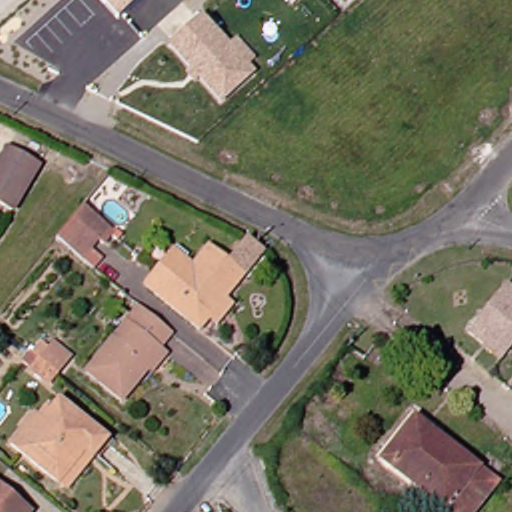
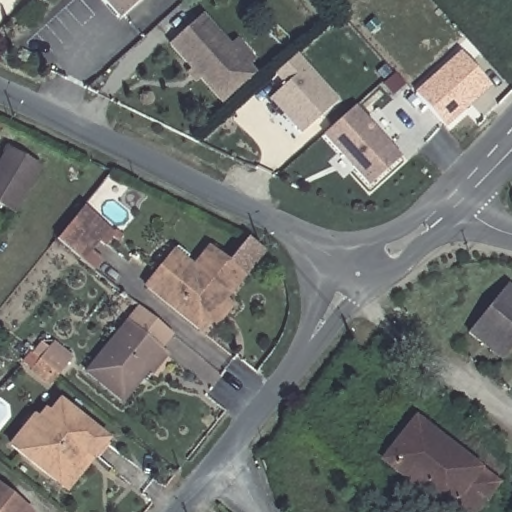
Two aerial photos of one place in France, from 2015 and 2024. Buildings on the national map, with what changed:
unchanged [(117,21),(98,0),(142,0),(117,21)]
unchanged [(261,71),(224,106),(165,47),(203,12),(261,71)]
new [(415,93),(460,52),(491,87),(446,128),(415,93)]
new [(301,135),(268,99),(286,84),(275,72),(297,53),(339,100),(320,117),(301,135)]
new [(357,106),(402,158),(372,184),(327,133),(357,106)]
unchanged [(0,158),(6,148),(35,165),(10,209),(0,204),(0,158)]
unchanged [(101,228),(75,260),(52,242),(78,210),(101,228)]
unchanged [(211,326),(202,319),(193,330),(141,286),(157,266),(168,253),(179,262),(187,269),(203,249),(237,277),(219,300),(226,306),(211,326)]
unchanged [(512,341),(505,349),(487,335),(472,324),(511,276),(512,277),(512,341)]
unchanged [(142,376),(139,373),(115,403),(79,375),(130,309),(162,335),(149,351),(157,358),(142,376)]
new [(54,340),(75,357),(58,377),(38,361),(54,340)]
unchanged [(51,483),(2,446),(25,416),(38,427),(55,405),(99,439),(86,455),(59,489),(51,483)]
unchanged [(488,486),(469,512),(441,512),(378,464),(410,422),(488,486)]
unchanged [(22,512),(0,512),(0,492),(23,511),(22,512)]

